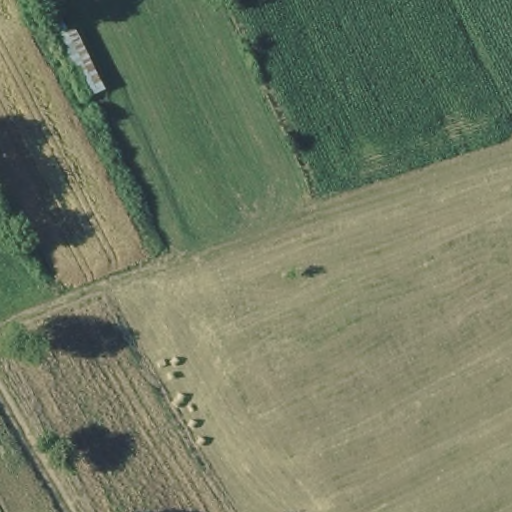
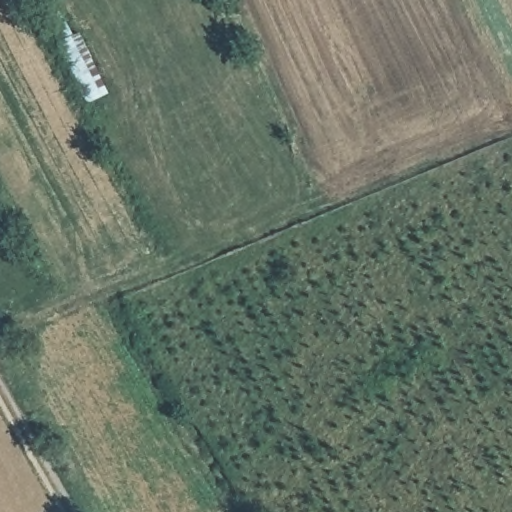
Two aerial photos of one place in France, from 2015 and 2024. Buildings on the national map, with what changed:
unchanged [(88,101),(46,14),(64,7),(75,31),(83,28),(113,89),(88,101)]

